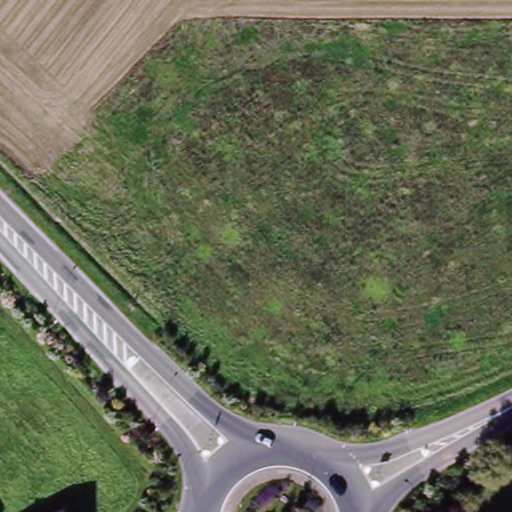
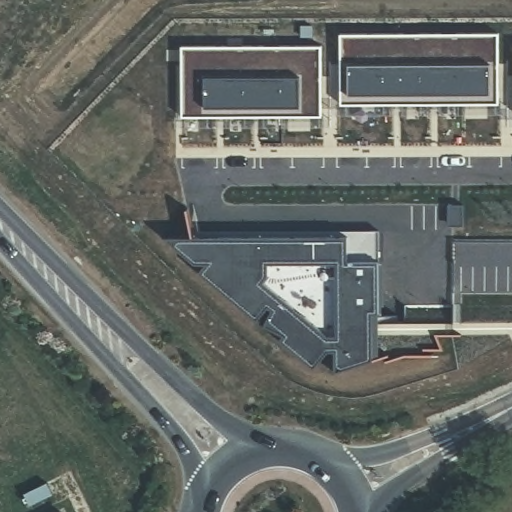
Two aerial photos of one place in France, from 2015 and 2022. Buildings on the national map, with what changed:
new [(342,106),(341,93),(342,66),(341,35),(405,34),(405,39),(420,40),(420,34),(442,34),(442,40),(457,40),(457,35),(500,34),(500,66),(500,93),(500,105),(438,105),(428,106),(405,105),(395,106),(342,106)]
new [(183,118),(183,109),(186,98),(186,68),(182,67),(182,47),(228,47),(229,52),(243,52),(243,47),(266,47),(266,52),(280,52),(280,47),(322,47),(322,78),(323,106),(323,117),(265,118),(255,118),(228,118),(218,118),(183,118)]
new [(465,206),(465,228),(453,228),(453,222),(449,222),(449,206),(465,206)]
new [(373,363),(336,373),(336,352),(329,352),(315,369),(282,341),(285,336),(257,321),(266,305),(261,302),(250,316),(201,273),(209,264),(196,264),(167,239),(203,240),(203,263),(371,262),(371,232),(380,232),(380,325),(380,361),(373,363)]
new [(347,239),(348,232),(371,232),(371,262),(203,263),(203,240),(347,239)]
unchanged [(66,512),(53,512),(63,506),(66,512)]

